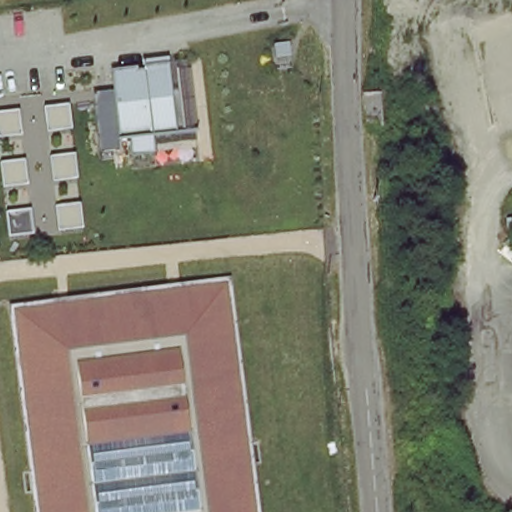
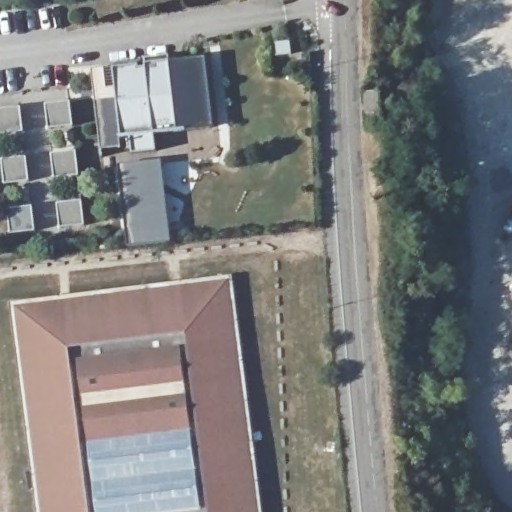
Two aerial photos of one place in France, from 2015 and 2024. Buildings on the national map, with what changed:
unchanged [(172,58),(180,125),(195,124),(197,146),(136,153),(122,136),(113,64),(172,58)]
unchanged [(101,149),(95,91),(116,88),(122,136),(119,137),(121,147),(101,149)]
unchanged [(380,92),(383,125),(366,127),(363,93),(380,92)]
unchanged [(47,104),(73,101),(76,128),(50,130),(47,104)]
unchanged [(22,108),(25,134),(0,136),(0,110),(22,108)]
unchanged [(52,154),(77,151),(81,177),(56,179),(52,154)]
unchanged [(2,159),(28,157),(31,183),(7,185),(2,159)]
new [(161,158),(172,242),(128,246),(117,163),(161,158)]
unchanged [(58,204),(83,201),(86,227),(62,229),(58,204)]
unchanged [(9,209),(33,207),(36,232),(12,235),(9,209)]
unchanged [(231,276),(261,512),(38,512),(11,304),(231,276)]

